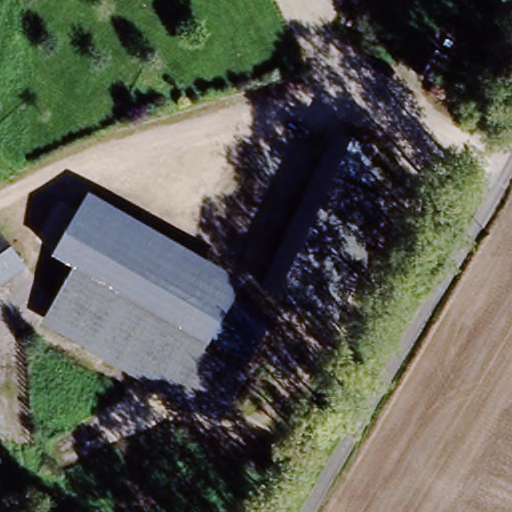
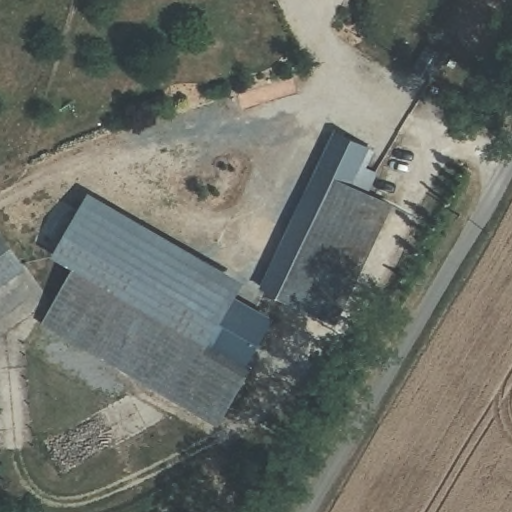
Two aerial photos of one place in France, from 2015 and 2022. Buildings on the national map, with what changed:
unchanged [(425,47),(445,58),(432,81),(412,70),(425,47)]
unchanged [(259,293),(333,138),(367,151),(363,169),(373,173),(366,191),(387,202),(335,324),(259,293)]
unchanged [(242,284),(237,296),(270,317),(213,427),(34,326),(68,273),(49,261),(88,197),(242,284)]
unchanged [(0,288),(0,242),(21,272),(0,288)]

